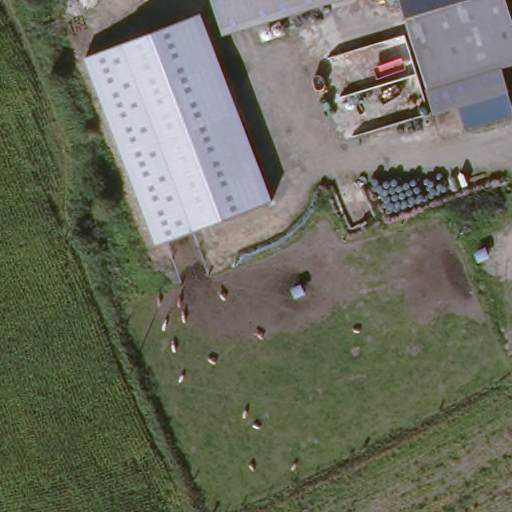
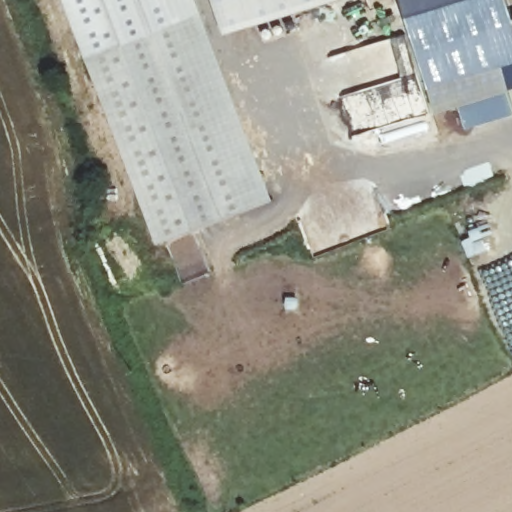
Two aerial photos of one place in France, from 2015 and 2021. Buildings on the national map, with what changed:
new [(64,0),(197,0),(202,13),(87,55),(64,0)]
unchanged [(224,35),(214,0),(332,0),(224,35)]
unchanged [(512,8),(512,64),(497,68),(431,87),(404,0),(510,0),(512,8)]
unchanged [(87,55),(202,13),(273,200),(157,243),(87,55)]
unchanged [(508,92),(428,112),(419,90),(431,87),(497,68),(508,92)]

